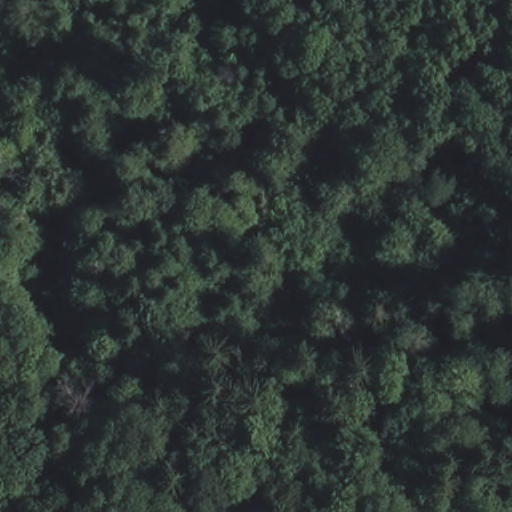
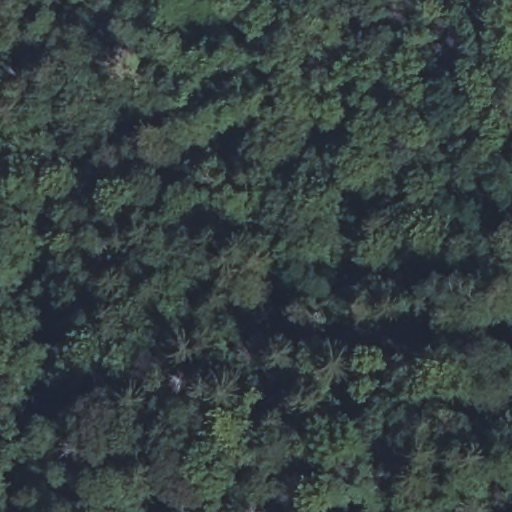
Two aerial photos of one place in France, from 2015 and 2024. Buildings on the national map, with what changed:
[]

